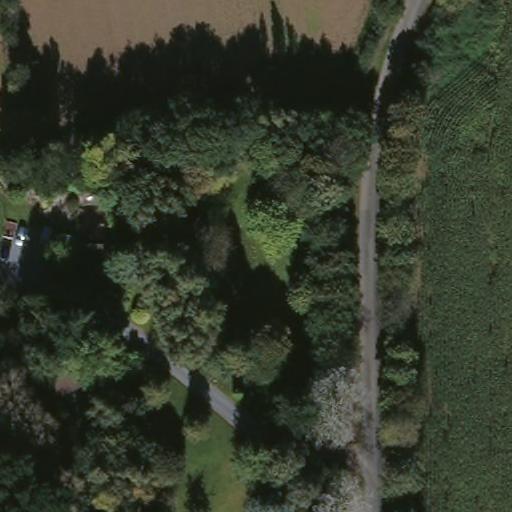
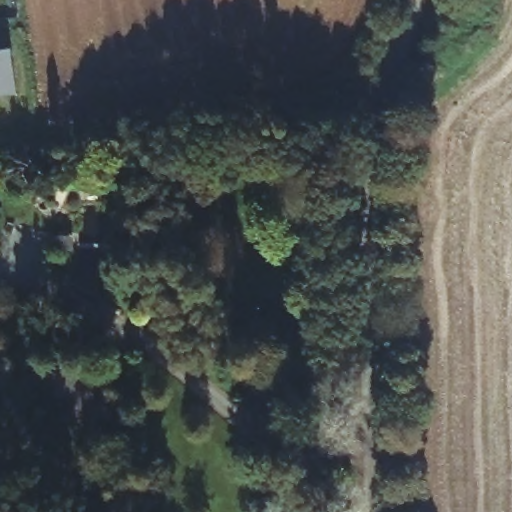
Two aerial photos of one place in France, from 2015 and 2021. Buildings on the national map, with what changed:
new [(15,96),(0,99),(0,52),(8,50),(15,96)]
unchanged [(54,380),(85,360),(97,378),(65,400),(54,380)]

